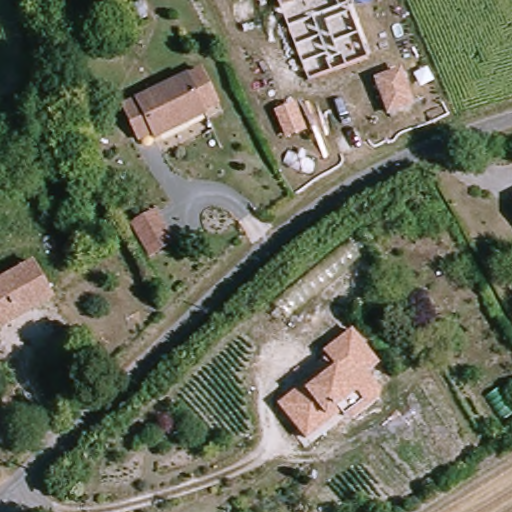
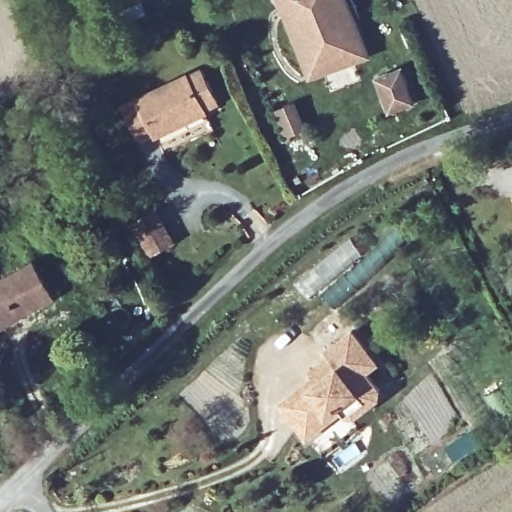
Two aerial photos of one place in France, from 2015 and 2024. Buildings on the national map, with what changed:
new [(368,59),(307,82),(275,0),(346,0),(368,59)]
unchanged [(403,69),(415,105),(388,116),(375,79),(403,69)]
unchanged [(171,82),(195,72),(215,112),(190,123),(171,82)]
unchanged [(153,124),(129,136),(116,108),(171,82),(190,123),(159,137),(153,124)]
unchanged [(512,202),(512,214),(507,205),(512,202)]
unchanged [(174,242),(148,257),(129,225),(157,210),(174,242)]
unchanged [(42,262),(59,296),(0,329),(0,285),(42,262)]
unchanged [(381,365),(368,374),(383,393),(348,422),(341,413),(307,439),(278,402),(329,360),(323,352),(353,329),(381,365)]

